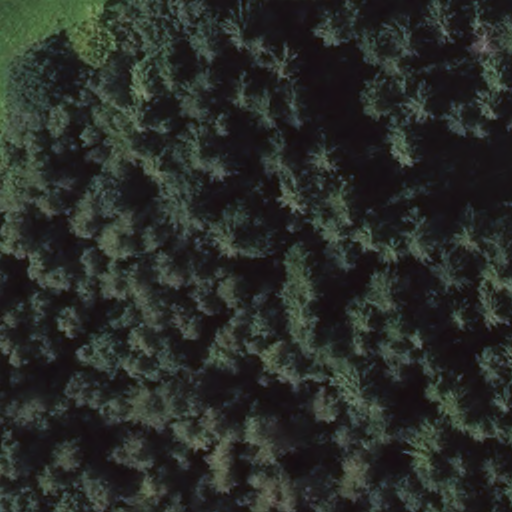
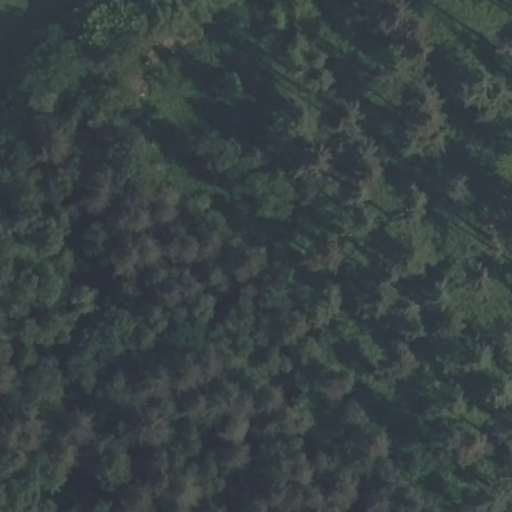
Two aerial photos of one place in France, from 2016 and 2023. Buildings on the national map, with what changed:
unchanged [(19,76),(31,88),(15,107),(1,96),(19,76)]

